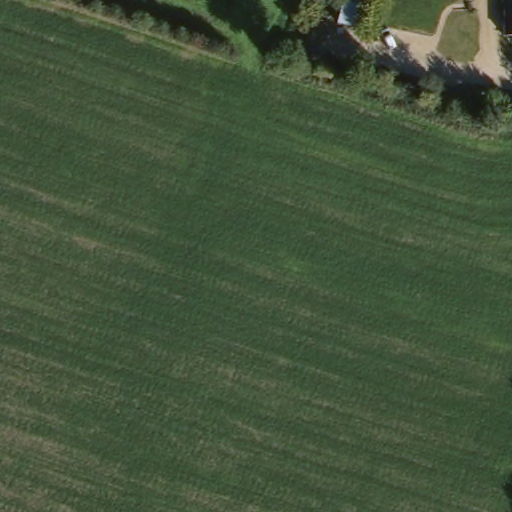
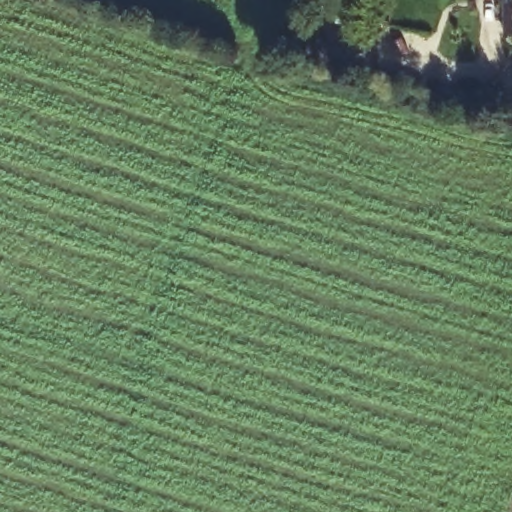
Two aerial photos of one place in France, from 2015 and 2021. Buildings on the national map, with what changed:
unchanged [(364,0),(357,29),(333,24),(338,0),(364,0)]
unchanged [(503,0),(512,0),(512,36),(501,36),(503,0)]

